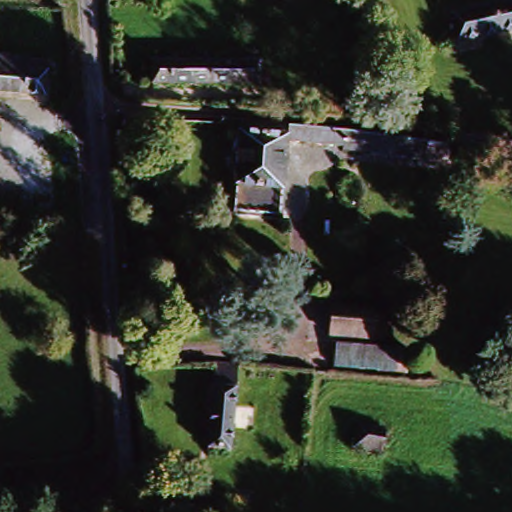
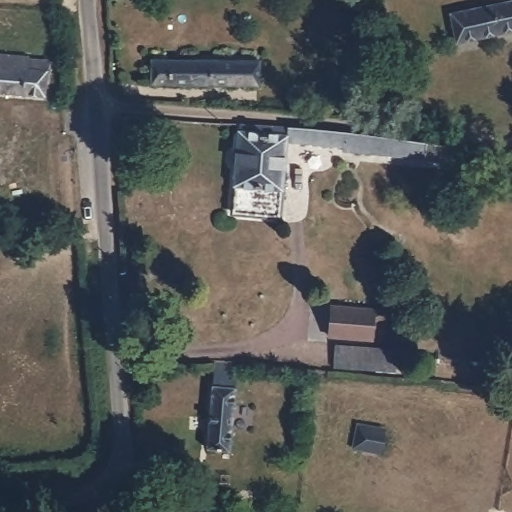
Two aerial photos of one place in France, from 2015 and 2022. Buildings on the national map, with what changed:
unchanged [(454,45),(445,12),(503,0),(512,0),(512,35),(454,45)]
unchanged [(43,100),(0,96),(0,51),(45,55),(43,100)]
unchanged [(149,91),(149,54),(258,51),(258,87),(149,91)]
unchanged [(345,156),(345,147),(288,145),(283,219),(228,214),(232,119),(449,137),(447,164),(345,156)]
unchanged [(384,332),(368,331),(331,327),(334,303),(371,308),(387,311),(384,332)]
unchanged [(408,348),(406,370),(339,365),(341,343),(408,348)]
unchanged [(237,362),(231,450),(208,447),(214,360),(237,362)]
unchanged [(348,448),(355,422),(392,430),(381,458),(348,448)]
unchanged [(202,512),(204,492),(233,492),(233,480),(261,484),(262,512),(202,512)]

